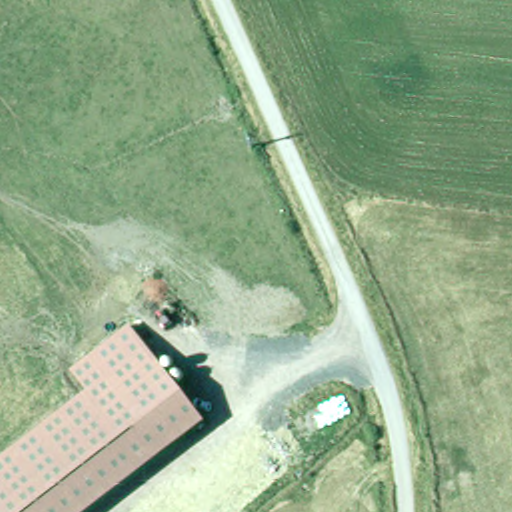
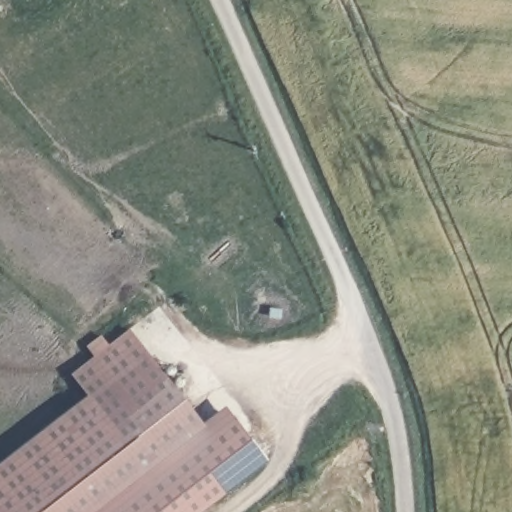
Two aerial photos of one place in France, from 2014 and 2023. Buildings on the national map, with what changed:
unchanged [(87,394),(70,372),(130,326),(203,425),(91,512),(0,512),(0,460),(87,394)]
new [(200,422),(225,403),(269,461),(201,512),(92,512),(203,425),(200,422)]

